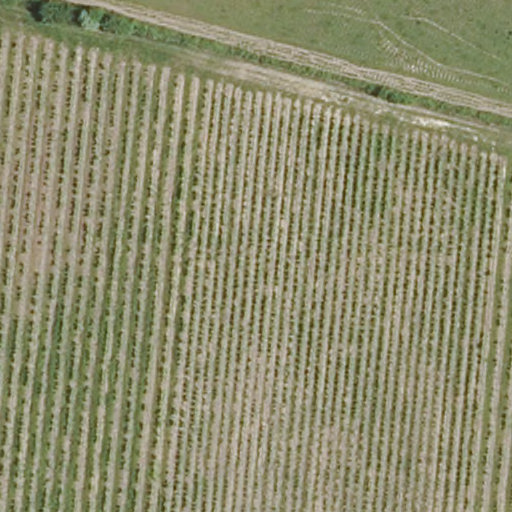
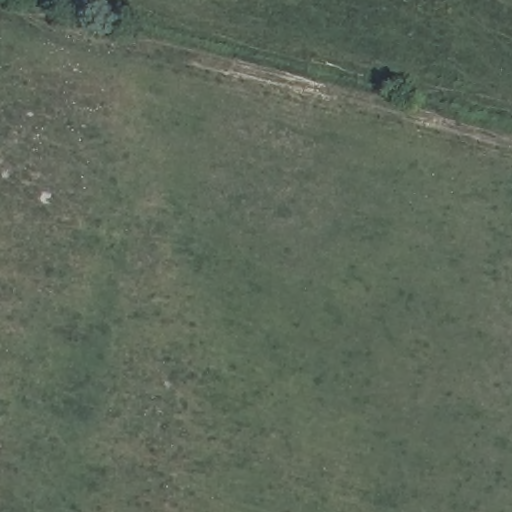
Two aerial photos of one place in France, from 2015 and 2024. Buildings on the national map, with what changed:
[]

